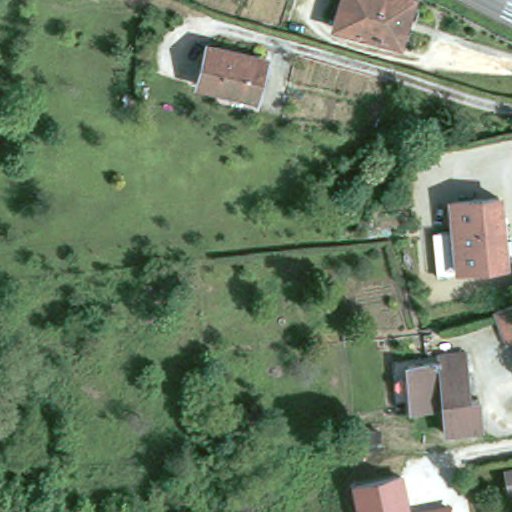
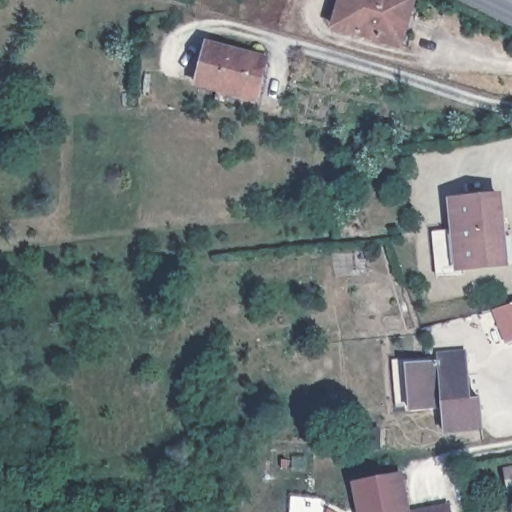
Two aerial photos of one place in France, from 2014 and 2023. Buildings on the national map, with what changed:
unchanged [(333,0),(413,0),(402,43),(387,39),(327,22),(333,0)]
unchanged [(202,83),(212,41),(239,48),(238,54),(269,62),(260,98),(219,87),(202,83)]
unchanged [(464,266),(442,268),(437,225),(458,223),(456,194),(500,189),(504,230),(512,230),(512,258),(464,262),(464,266)]
unchanged [(510,305),(512,305),(512,340),(507,341),(494,310),(510,305)]
unchanged [(442,432),(441,416),(441,408),(409,410),(405,363),(437,362),(437,356),(464,354),(467,400),(478,400),(480,429),(462,430),(442,432)]
unchanged [(403,471),(410,507),(451,500),(453,512),(357,512),(351,483),(403,471)]
unchanged [(507,491),(504,472),(512,471),(512,490),(507,491)]

